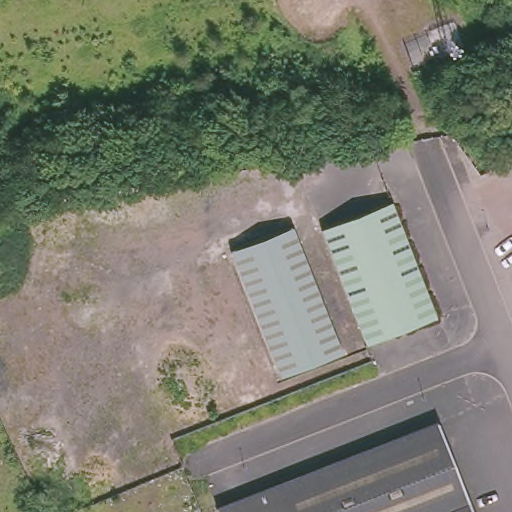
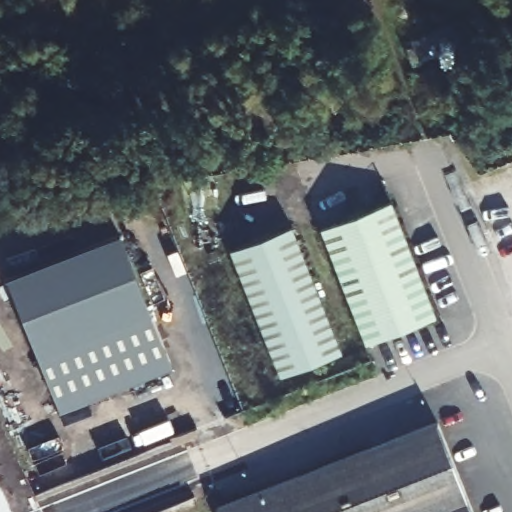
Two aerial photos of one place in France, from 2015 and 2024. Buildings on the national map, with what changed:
unchanged [(435,311),(365,338),(321,230),(392,203),(435,311)]
unchanged [(234,252),(295,227),(347,353),(285,377),(234,252)]
new [(173,377),(60,420),(10,289),(123,246),(173,377)]
unchanged [(476,512),(218,512),(215,504),(437,415),(476,512)]

